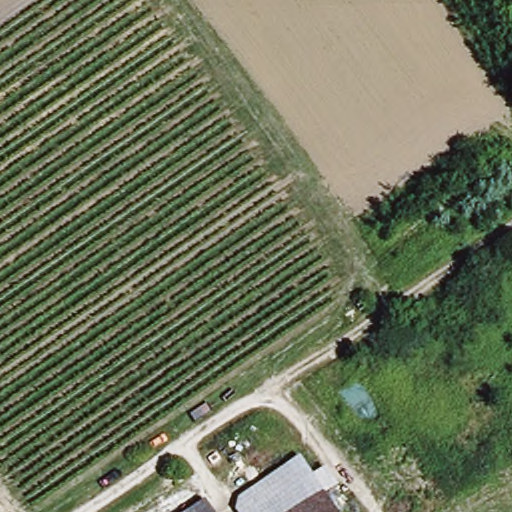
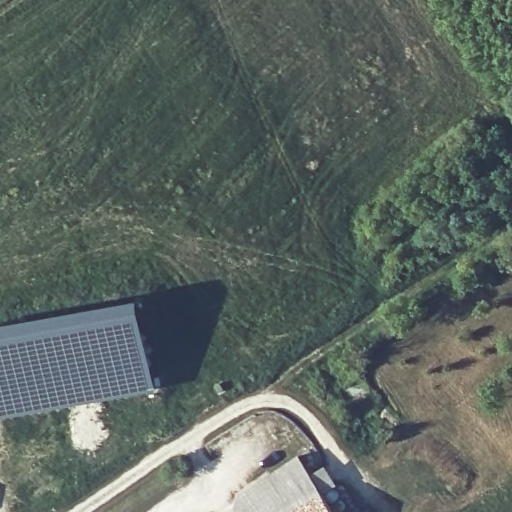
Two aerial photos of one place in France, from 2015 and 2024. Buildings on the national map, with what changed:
new [(142,297),(160,390),(0,420),(0,321),(142,297)]
unchanged [(238,495),(276,470),(300,453),(315,472),(328,464),(340,481),(326,486),(302,500),(284,512),(237,512),(236,510),(238,495)]
unchanged [(326,486),(342,512),(284,512),(302,500),(326,486)]
unchanged [(223,512),(211,512),(219,506),(223,512)]

